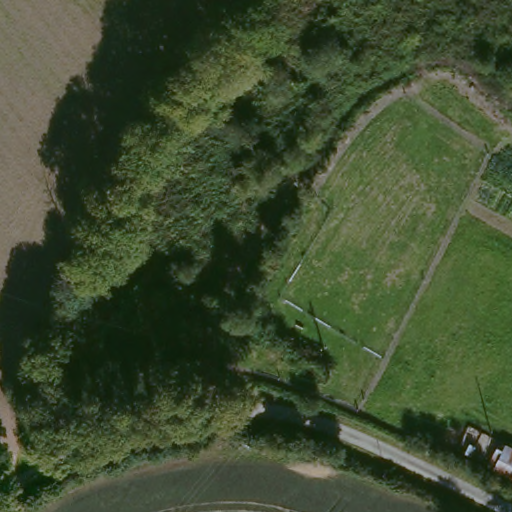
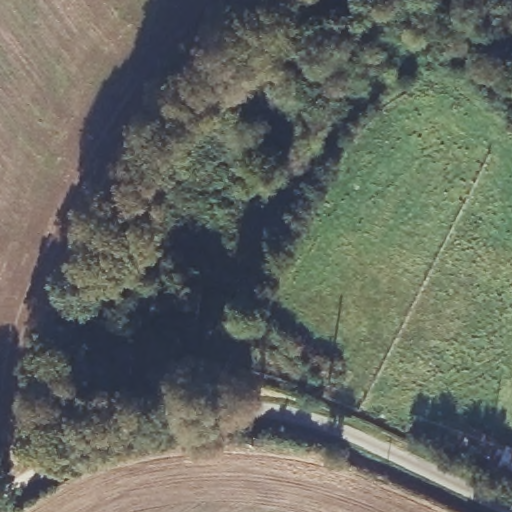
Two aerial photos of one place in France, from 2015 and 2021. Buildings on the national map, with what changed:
unchanged [(279,400),(282,390),(297,393),(294,404),(279,400)]
unchanged [(512,450),(512,476),(492,466),(501,445),(512,450)]

